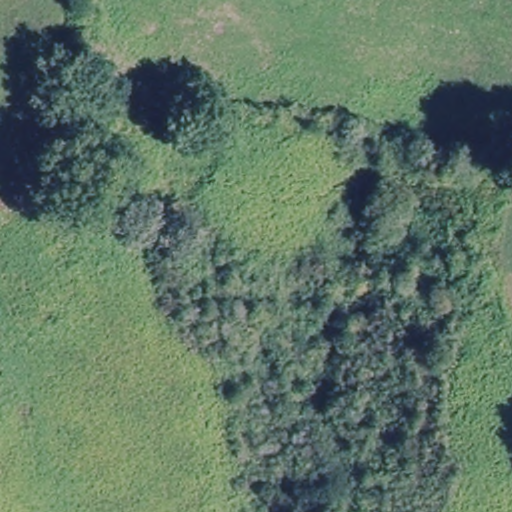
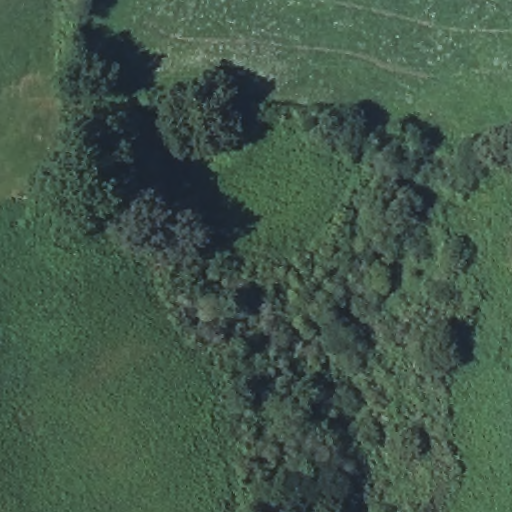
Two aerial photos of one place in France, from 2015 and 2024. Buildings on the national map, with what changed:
[]

